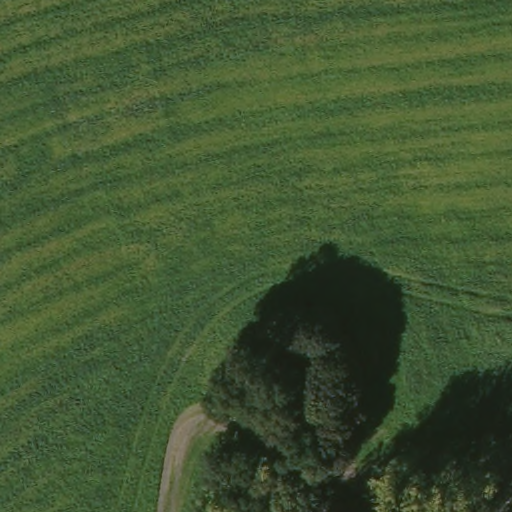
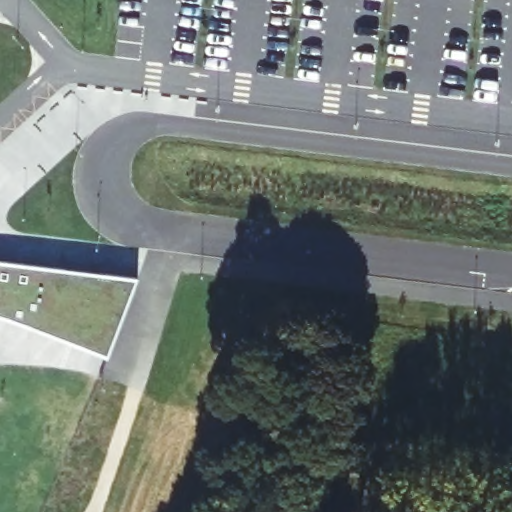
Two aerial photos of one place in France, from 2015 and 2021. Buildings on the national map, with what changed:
new [(107,357),(30,327),(0,317),(0,264),(137,280),(107,357)]

